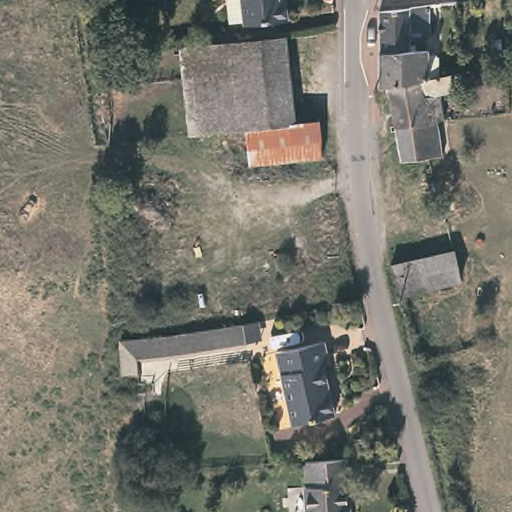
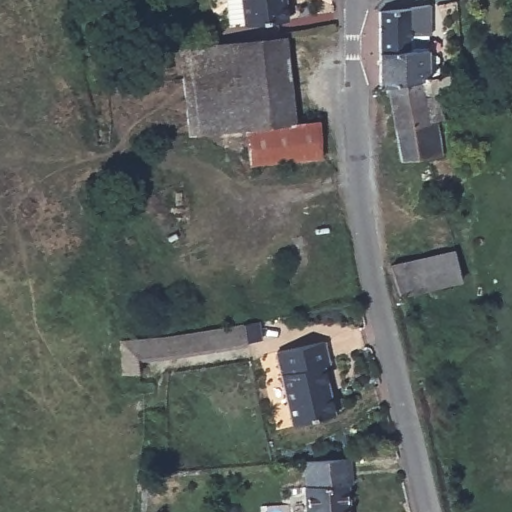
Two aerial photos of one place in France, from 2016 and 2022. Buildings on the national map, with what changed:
unchanged [(286,0),(289,20),(244,25),(244,22),(230,24),(227,0),(286,0)]
unchanged [(384,91),(374,93),(374,16),(424,11),(424,40),(404,42),(404,57),(432,56),(433,82),(384,91)]
unchanged [(190,136),(181,50),(284,37),(294,124),(245,130),(190,136)]
unchanged [(459,78),(461,89),(449,92),(449,97),(436,100),(439,125),(433,126),(438,160),(396,165),(384,91),(433,82),(459,78)]
unchanged [(322,157),(249,166),(245,130),(294,124),(319,121),(322,157)]
unchanged [(462,281),(401,293),(394,265),(454,251),(462,281)]
unchanged [(247,343),(143,361),(144,373),(122,374),(119,340),(159,337),(243,325),(247,343)]
unchanged [(329,366),(324,367),(333,415),(293,423),(277,353),(324,343),(329,366)]
unchanged [(352,483),(349,483),(349,512),(307,512),(304,461),(351,458),(352,483)]

